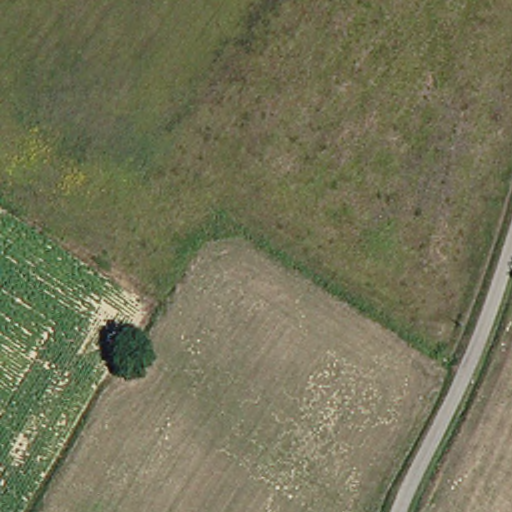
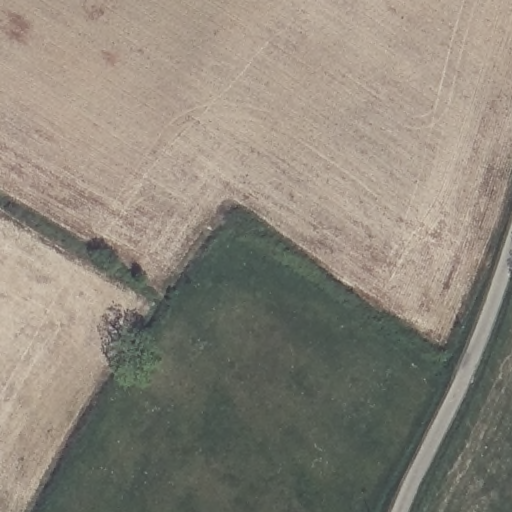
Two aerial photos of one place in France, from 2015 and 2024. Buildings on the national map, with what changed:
[]

